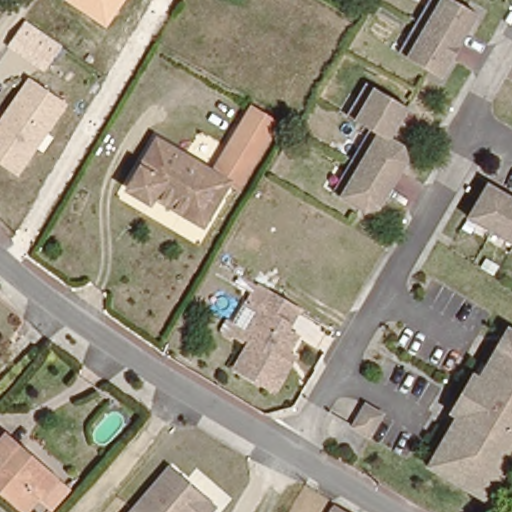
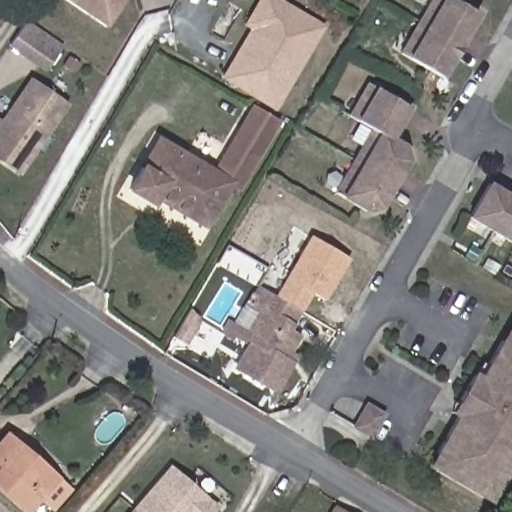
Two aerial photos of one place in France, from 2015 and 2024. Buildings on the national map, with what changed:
unchanged [(106,28),(64,0),(65,0),(125,0),(106,28)]
new [(322,25),(273,107),(240,86),(270,35),(249,22),(262,0),(279,0),(322,25)]
unchanged [(479,14),(456,52),(441,77),(405,56),(401,54),(417,26),(433,0),(456,0),(479,14)]
unchanged [(44,72),(7,46),(25,20),(62,46),(44,72)]
new [(270,35),(240,86),(224,77),(255,25),(270,35)]
unchanged [(19,177),(0,165),(0,120),(29,77),(68,104),(19,177)]
unchanged [(410,163),(382,210),(368,214),(337,195),(377,129),(366,122),(353,115),(371,86),(383,93),(411,110),(393,141),(407,149),(410,163)]
unchanged [(191,157),(212,170),(250,105),(272,118),(235,182),(227,178),(203,219),(167,197),(191,157)]
unchanged [(151,200),(128,186),(156,138),(191,157),(167,197),(156,191),(151,200)]
unchanged [(512,242),(469,217),(489,184),(512,197),(512,242)]
new [(323,300),(311,292),(298,310),(273,296),(309,235),(349,258),(323,300)]
unchanged [(290,363),(274,390),(236,368),(255,335),(240,326),(221,315),(242,278),(262,290),(298,310),(286,330),(297,336),(287,352),(294,356),(290,363)]
unchanged [(454,413),(460,401),(475,376),(481,380),(502,344),(509,348),(512,344),(512,463),(489,501),(438,471),(445,459),(438,455),(460,417),(454,413)]
unchanged [(386,415),(373,436),(357,427),(370,405),(386,415)]
unchanged [(29,511),(0,488),(0,440),(6,432),(58,475),(29,511)]
unchanged [(221,510),(219,512),(134,512),(177,468),(221,510)]
unchanged [(332,512),(339,501),(357,512),(332,512)]

